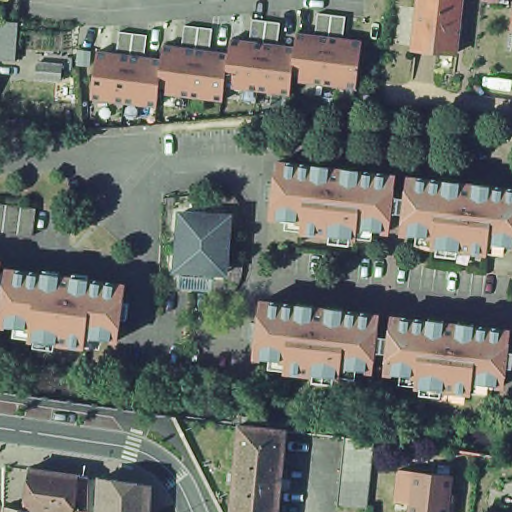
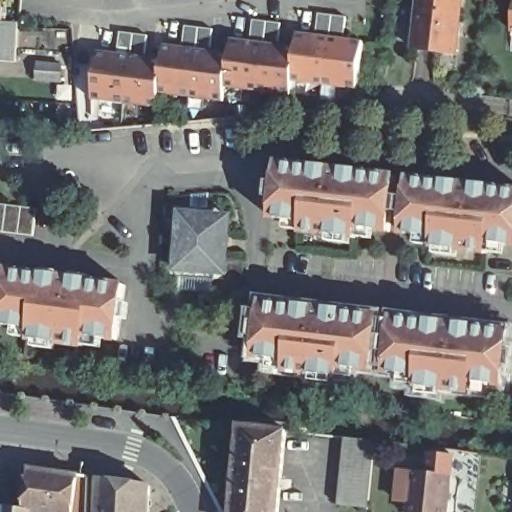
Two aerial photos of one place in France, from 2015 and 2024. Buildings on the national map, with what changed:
unchanged [(461,0),(455,56),(412,51),(418,0),(461,0)]
unchanged [(3,2),(4,20),(19,22),(17,62),(0,61),(0,2),(3,2)]
unchanged [(114,52),(117,29),(147,34),(145,54),(160,56),(162,42),(180,44),(182,22),(215,29),(212,49),(227,51),(230,35),(250,37),(252,19),(280,20),(280,45),(296,47),(297,33),(310,33),(313,10),(347,16),(345,37),(362,40),(356,89),(292,81),(291,94),(227,88),(225,99),(159,94),(157,107),(92,104),(98,51),(114,52)]
unchanged [(512,23),(512,34),(510,34),(512,23)]
unchanged [(34,58),(58,62),(55,78),(31,74),(34,58)]
unchanged [(103,114),(105,125),(85,126),(83,126),(83,115),(103,114)]
unchanged [(12,117),(12,133),(10,134),(0,134),(0,118),(12,117)]
unchanged [(390,179),(384,234),(352,230),(350,240),(295,234),(297,224),(265,220),(272,165),(308,169),(309,166),(323,169),(323,170),(338,172),(337,175),(351,177),(352,174),(390,179)]
unchanged [(338,172),(338,170),(353,171),(352,174),(352,177),(351,177),(337,175),(338,172)]
unchanged [(483,187),(483,190),(512,193),(512,249),(482,246),(481,256),(427,250),(427,240),(395,235),(402,180),(438,185),(439,182),(453,185),(452,186),(468,188),(468,186),(483,187)]
unchanged [(37,205),(32,233),(0,229),(0,201),(37,205)]
unchanged [(184,211),(235,215),(231,271),(180,268),(184,211)]
unchanged [(2,271),(120,288),(112,343),(81,338),(79,350),(25,342),(25,331),(0,328),(0,283),(2,271)]
unchanged [(367,374),(335,370),(334,381),(280,374),(280,363),(248,359),(255,304),(292,308),(292,306),(307,308),(307,310),(322,312),(322,310),(337,312),(337,314),(374,318),(367,374)]
unchanged [(453,326),(467,327),(467,330),(504,334),(498,389),(467,385),(465,396),(410,390),(412,379),(380,375),(387,320),(423,325),(424,325),(423,322),(437,324),(437,326),(452,328),(453,326)]
unchanged [(228,423),(274,429),(266,512),(220,512),(228,423)]
unchanged [(342,436),(372,440),(367,506),(337,504),(342,436)]
unchanged [(25,474),(83,482),(82,487),(81,512),(19,512),(25,474)]
unchanged [(408,475),(445,479),(442,512),(404,512),(408,475)]
unchanged [(95,484),(143,490),(143,512),(94,512),(95,484)]

